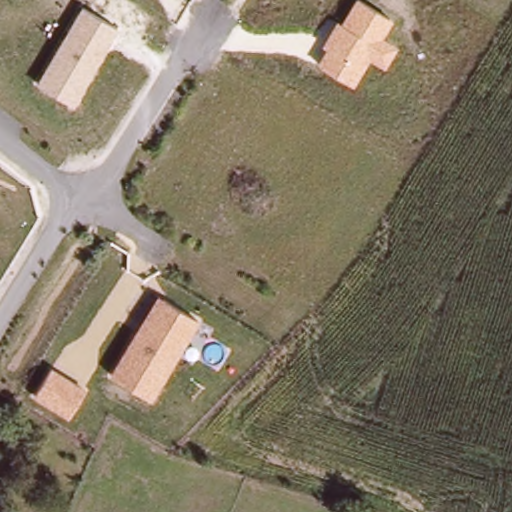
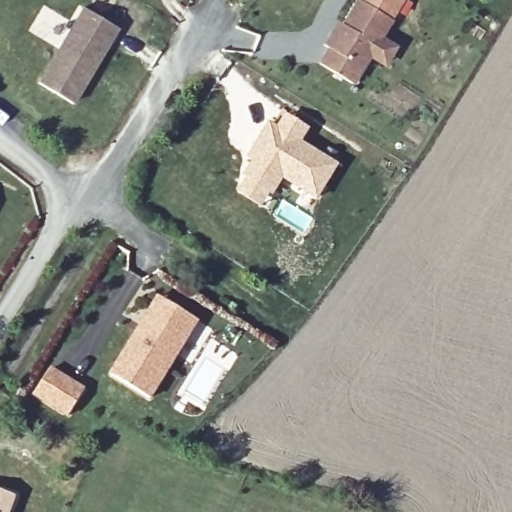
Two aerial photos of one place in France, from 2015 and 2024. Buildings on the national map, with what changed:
unchanged [(321,46),(337,20),(341,22),(355,0),(360,0),(393,20),(384,37),(398,45),(384,67),(371,57),(354,84),(318,62),(326,48),(321,46)]
unchanged [(81,5),(117,28),(74,103),(35,80),(81,5)]
new [(247,159),(272,120),(277,124),(284,111),(311,128),(304,141),(340,164),(318,201),(284,179),(264,208),(234,190),(247,159)]
unchanged [(158,295),(199,320),(153,400),(110,374),(158,295)]
unchanged [(85,387),(68,416),(34,394),(50,367),(85,387)]
new [(12,512),(0,512),(0,490),(18,496),(12,512)]

